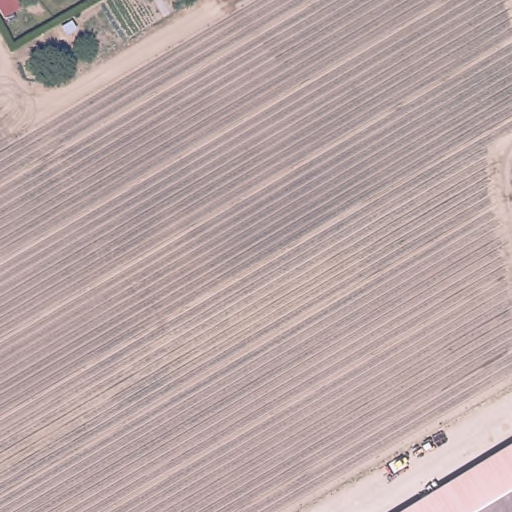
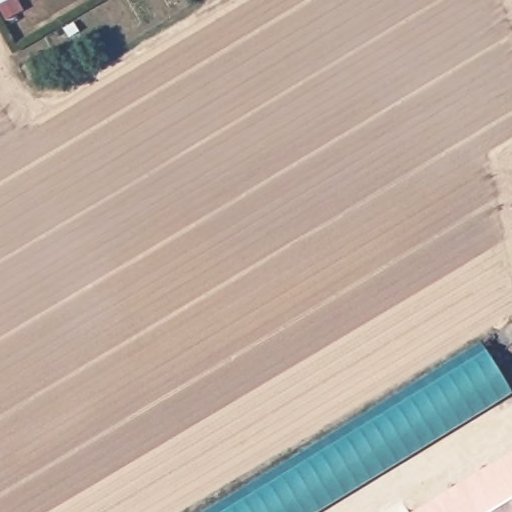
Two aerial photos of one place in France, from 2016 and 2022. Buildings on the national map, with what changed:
new [(507,389),(309,512),(210,512),(480,346),(507,389)]
unchanged [(472,512),(419,512),(512,455),(512,488),(472,512)]
unchanged [(472,512),(512,488),(512,512),(472,512)]

